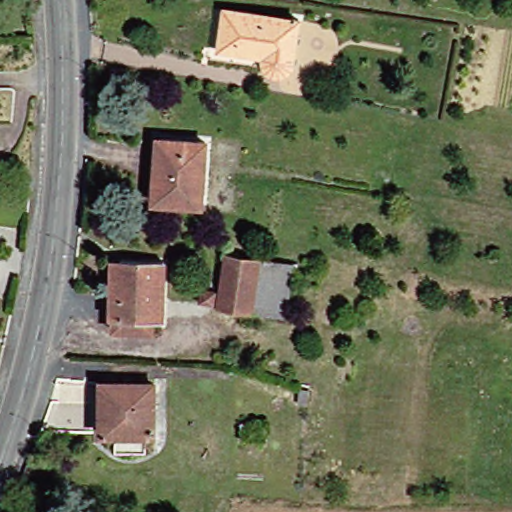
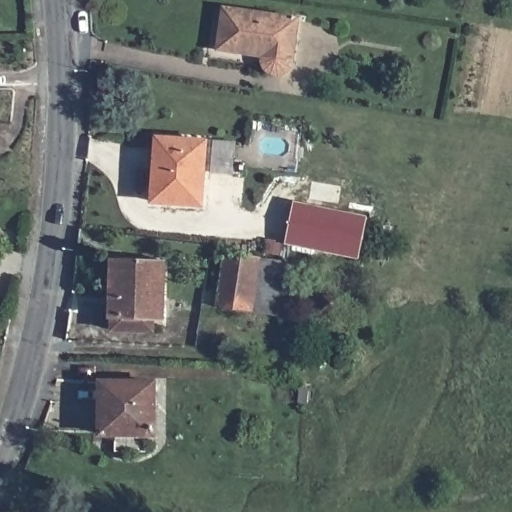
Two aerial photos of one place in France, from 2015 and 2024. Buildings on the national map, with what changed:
unchanged [(295,21),(289,66),(282,75),(275,79),(268,77),(261,72),(258,60),(215,52),(220,11),(295,21)]
unchanged [(112,79),(115,144),(84,146),(82,80),(112,79)]
unchanged [(199,147),(199,209),(154,209),(156,148),(199,147)]
new [(363,212),(353,260),(284,246),(294,199),(363,212)]
unchanged [(137,265),(138,250),(181,251),(180,275),(161,272),(152,305),(147,342),(98,337),(108,262),(137,265)]
unchanged [(255,265),(244,311),(227,307),(210,303),(221,257),(235,260),(255,265)]
unchanged [(255,265),(286,273),(275,317),(244,311),(255,265)]
unchanged [(148,385),(148,438),(94,441),(94,385),(148,385)]

